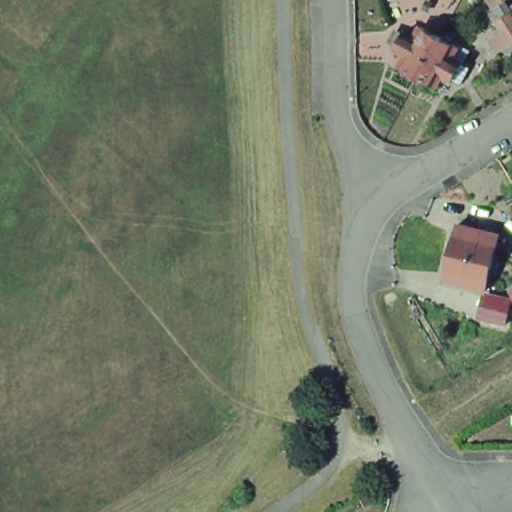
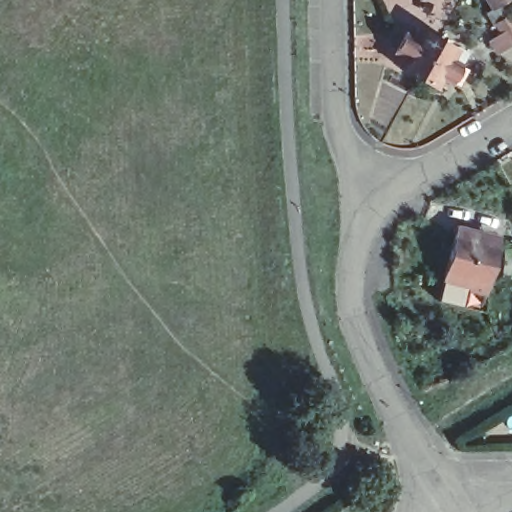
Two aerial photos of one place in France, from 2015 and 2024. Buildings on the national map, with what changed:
unchanged [(495,24),(491,25),(484,13),(490,9),(485,0),(504,0),(502,1),(500,2),(508,16),(506,16),(512,25),(512,44),(508,46),(495,24)]
unchanged [(413,38),(419,29),(437,38),(415,77),(397,67),(403,57),(392,51),(393,49),(387,45),(395,32),(401,35),(402,33),(413,38)]
unchanged [(460,84),(451,79),(450,81),(440,76),(434,88),(415,77),(437,38),(455,48),(465,54),(460,64),(468,68),(460,84)]
unchanged [(450,226),(473,231),(472,237),(490,242),(484,265),(444,254),(450,226)]
unchanged [(437,282),(444,254),(484,265),(480,285),(477,285),(475,293),(460,289),(437,282)]
unchanged [(512,288),(512,301),(508,303),(503,293),(512,288)]
unchanged [(475,310),(475,297),(498,297),(497,311),(475,310)]

